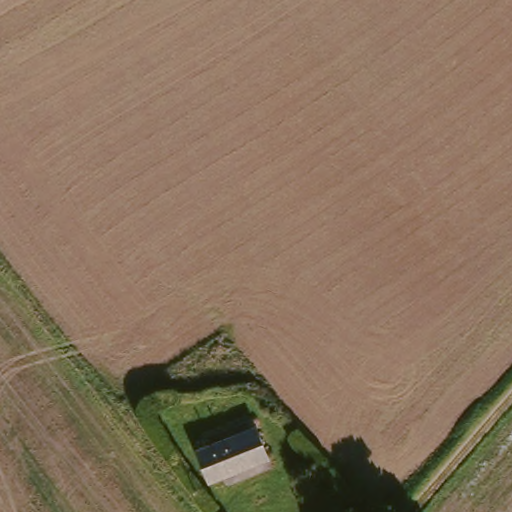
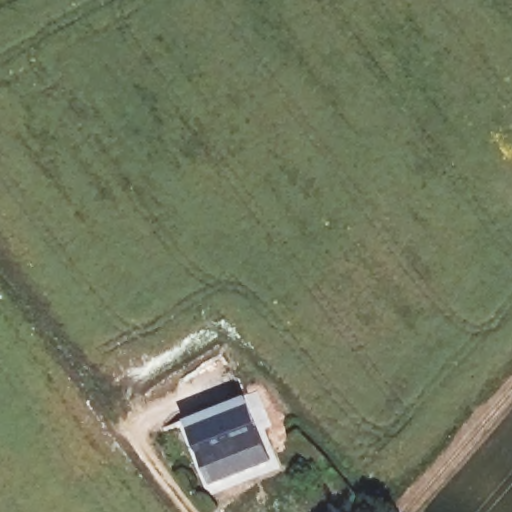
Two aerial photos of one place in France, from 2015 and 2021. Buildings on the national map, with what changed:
new [(255,423),(208,441),(195,446),(184,418),(243,393),(257,422),(255,423)]
unchanged [(208,441),(255,423),(257,422),(269,454),(208,478),(195,446),(208,441)]

